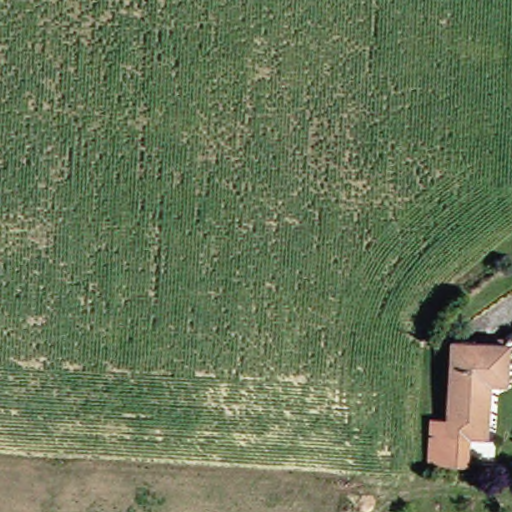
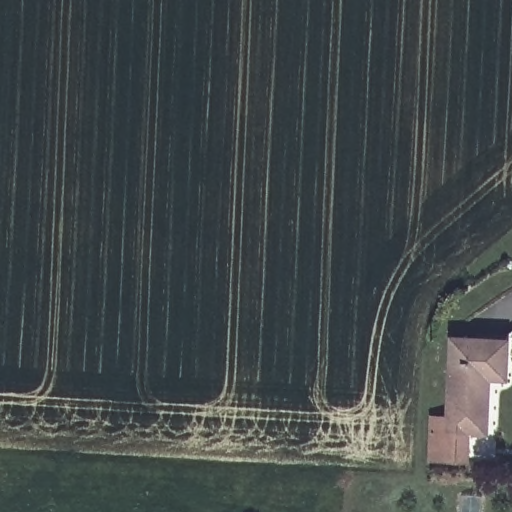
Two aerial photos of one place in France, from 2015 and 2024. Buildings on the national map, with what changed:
unchanged [(493,401),(452,398),(455,335),(512,337),(512,380),(494,379),(493,401)]
unchanged [(493,401),(492,433),(470,433),(470,451),(431,450),(432,411),(452,411),(452,398),(493,401)]

